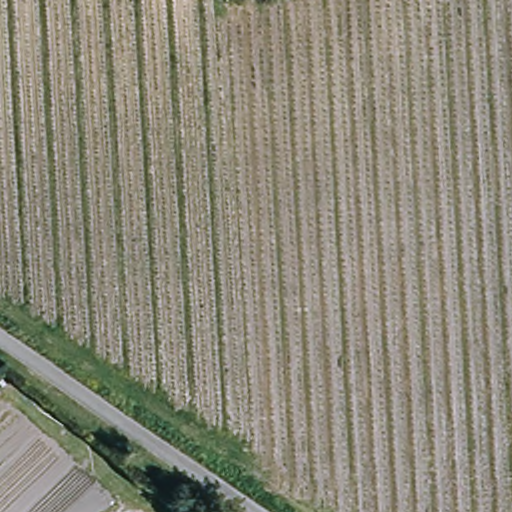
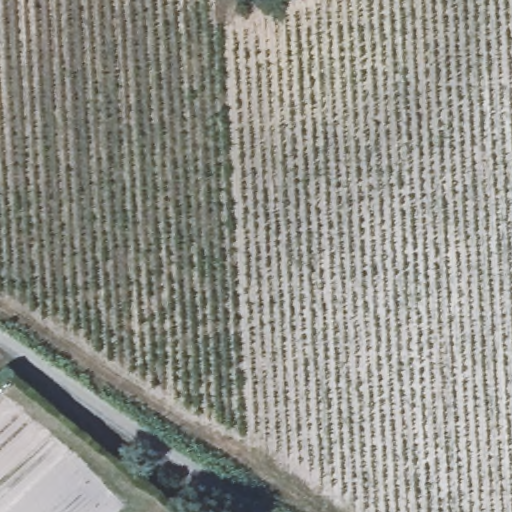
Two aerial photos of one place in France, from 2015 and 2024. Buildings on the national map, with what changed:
[]

